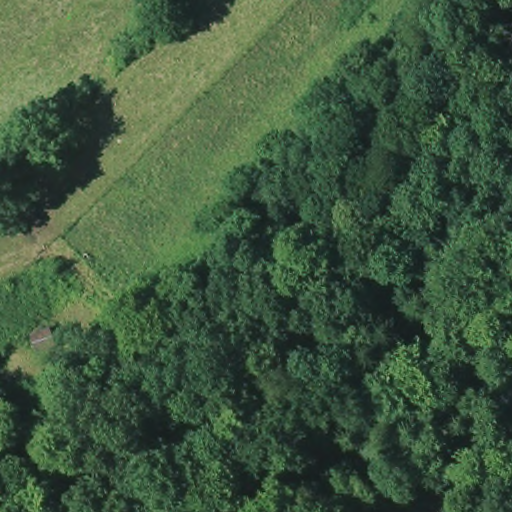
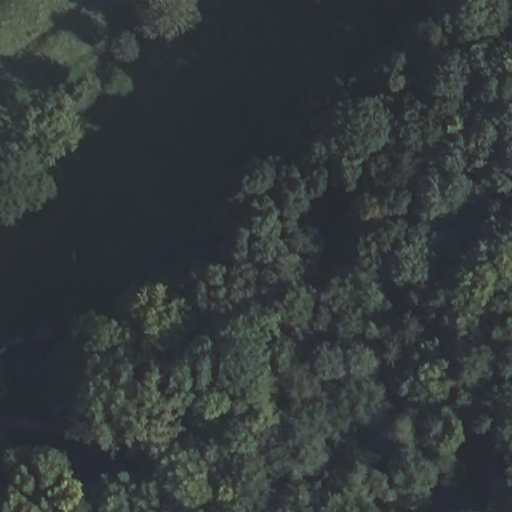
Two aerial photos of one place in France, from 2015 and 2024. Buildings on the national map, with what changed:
unchanged [(58,345),(38,356),(29,332),(48,325),(58,345)]

